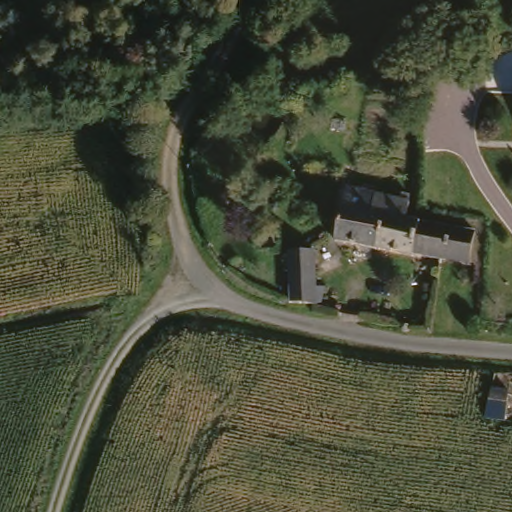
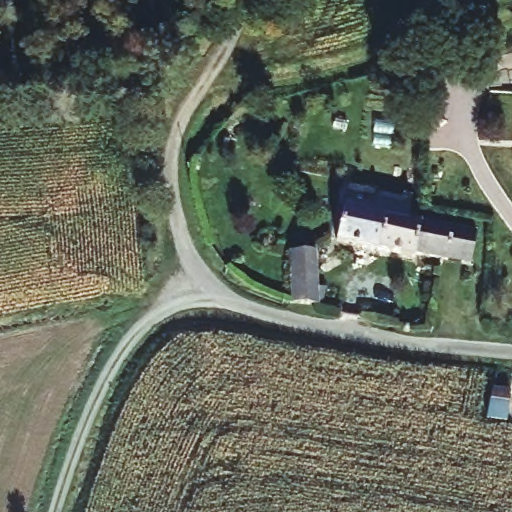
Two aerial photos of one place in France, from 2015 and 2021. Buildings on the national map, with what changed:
unchanged [(408,208),(404,225),(473,238),(469,270),(332,247),(343,195),(408,208)]
unchanged [(288,252),(312,252),(315,305),(288,303),(288,252)]

